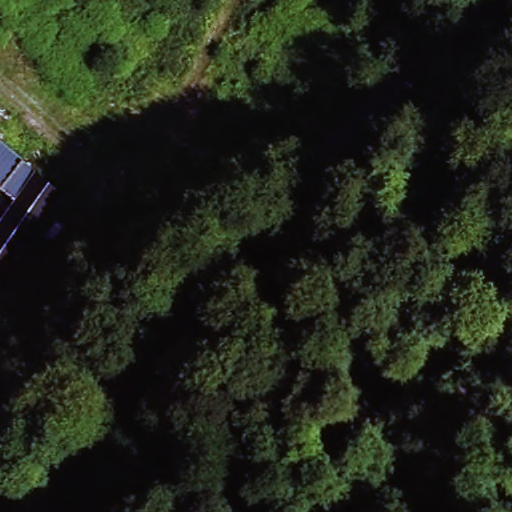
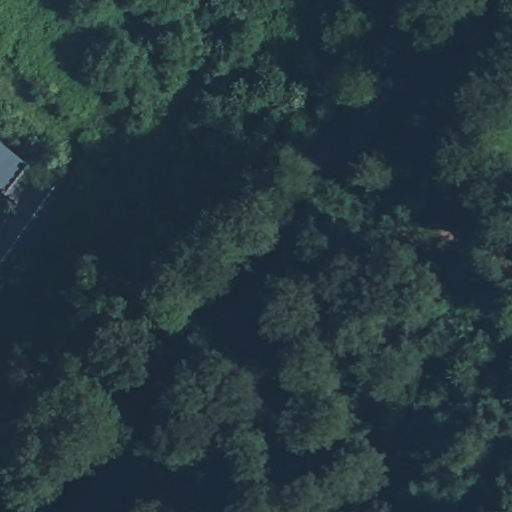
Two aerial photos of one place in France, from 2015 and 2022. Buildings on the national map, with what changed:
unchanged [(68,191),(0,291),(0,135),(27,156),(68,191)]

